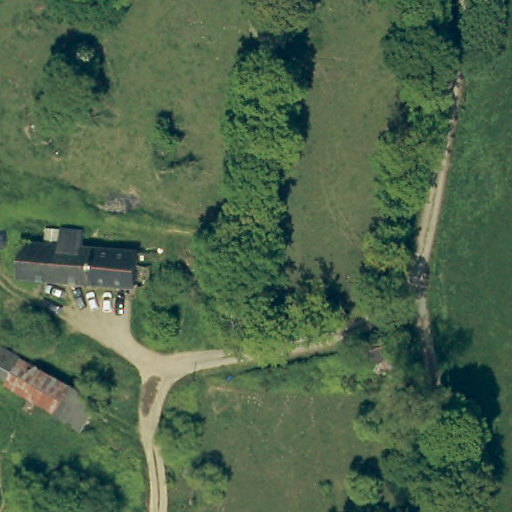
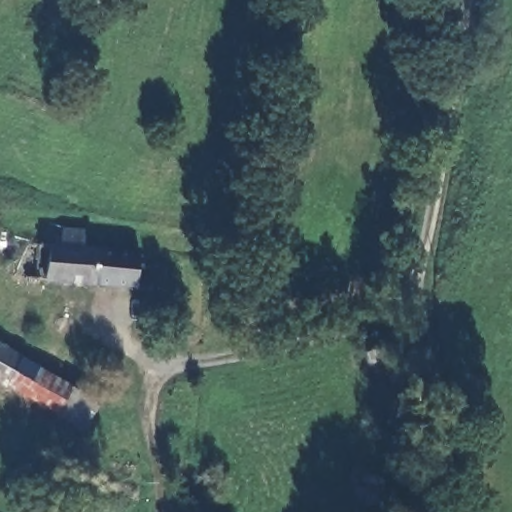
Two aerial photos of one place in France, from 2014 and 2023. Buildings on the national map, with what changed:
unchanged [(64,226),(84,227),(84,243),(102,244),(98,281),(22,276),(23,268),(27,238),(64,241),(64,226)]
unchanged [(140,285),(98,281),(102,244),(145,248),(140,285)]
unchanged [(395,329),(407,328),(408,339),(398,341),(399,350),(370,353),(366,329),(394,324),(395,329)]
unchanged [(82,424),(62,415),(0,378),(0,340),(78,389),(74,394),(94,406),(82,424)]

